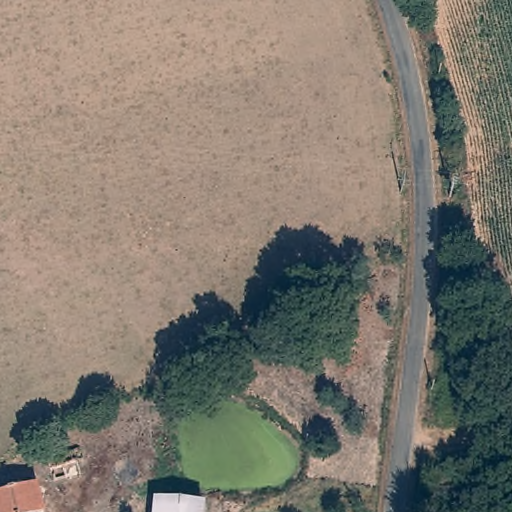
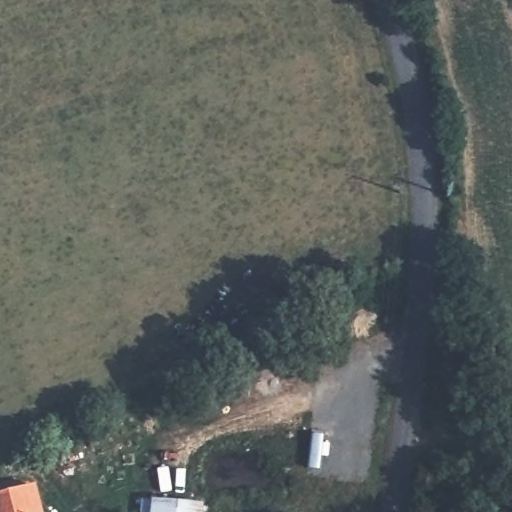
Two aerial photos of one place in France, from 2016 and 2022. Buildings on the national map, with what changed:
unchanged [(75,453),(78,462),(46,471),(45,461),(75,453)]
unchanged [(38,512),(0,512),(0,497),(32,488),(38,512)]
unchanged [(156,512),(157,497),(200,502),(200,512),(156,512)]

